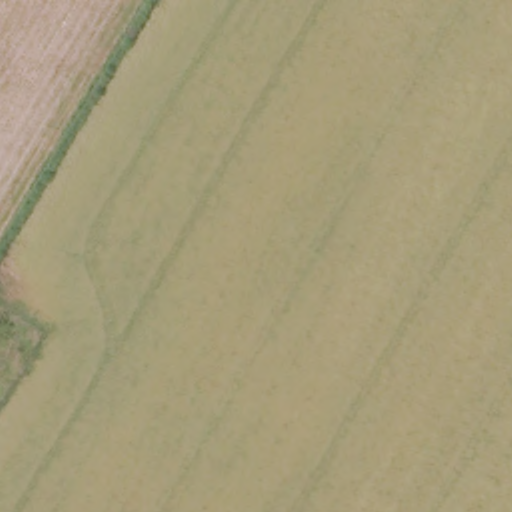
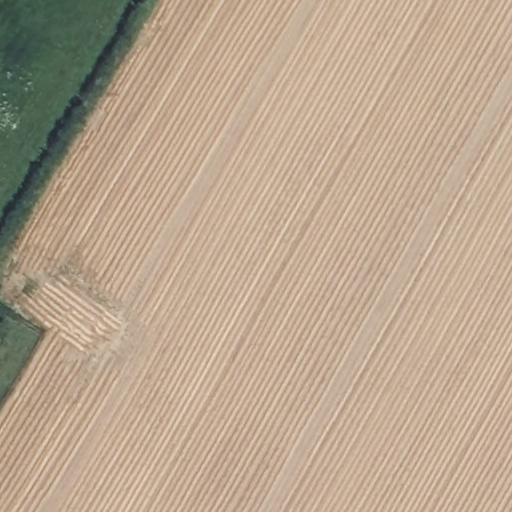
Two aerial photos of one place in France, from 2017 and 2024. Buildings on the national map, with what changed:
[]

